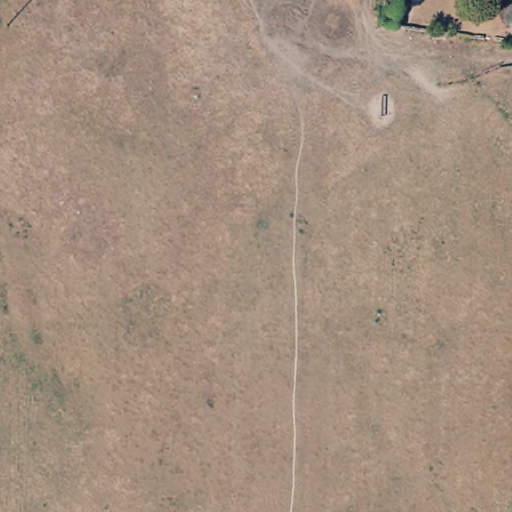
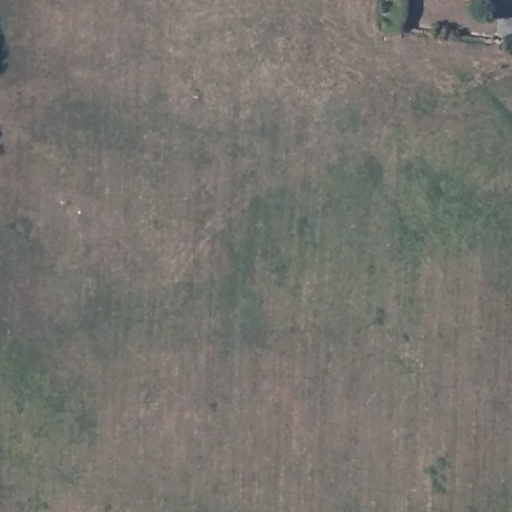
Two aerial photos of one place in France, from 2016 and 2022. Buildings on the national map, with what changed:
unchanged [(380,18),(381,0),(400,0),(398,19),(397,33),(378,31),(380,18)]

